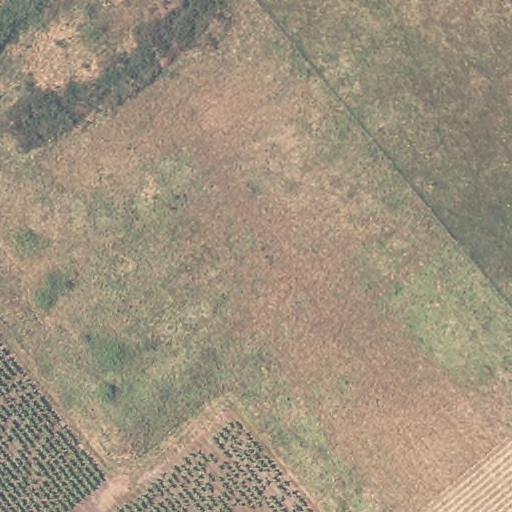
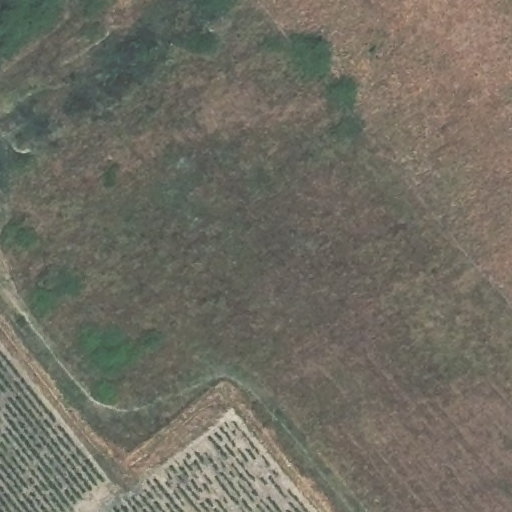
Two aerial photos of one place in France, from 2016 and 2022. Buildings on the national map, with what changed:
[]

